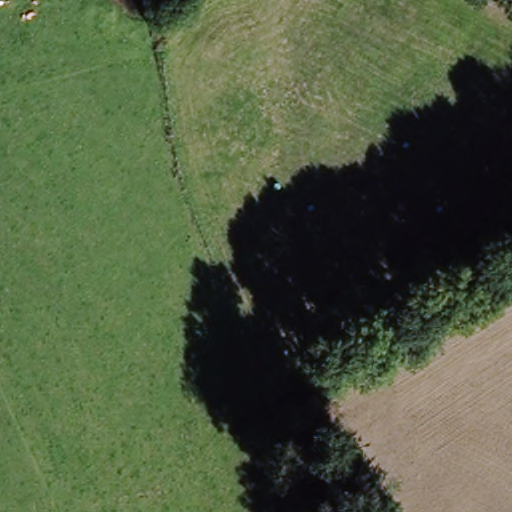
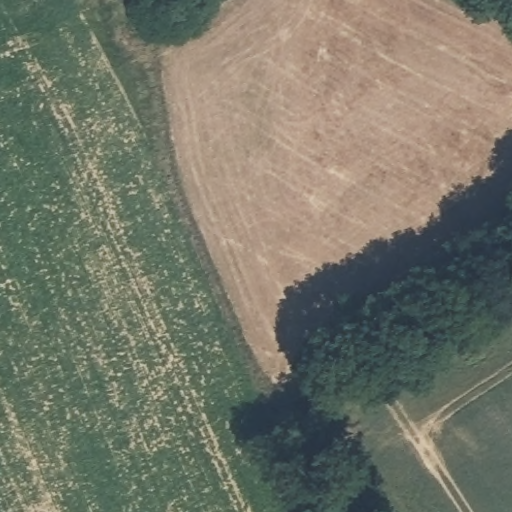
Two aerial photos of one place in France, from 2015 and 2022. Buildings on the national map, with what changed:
[]

